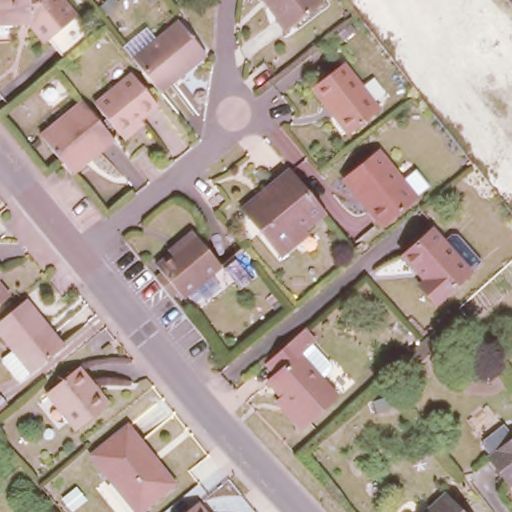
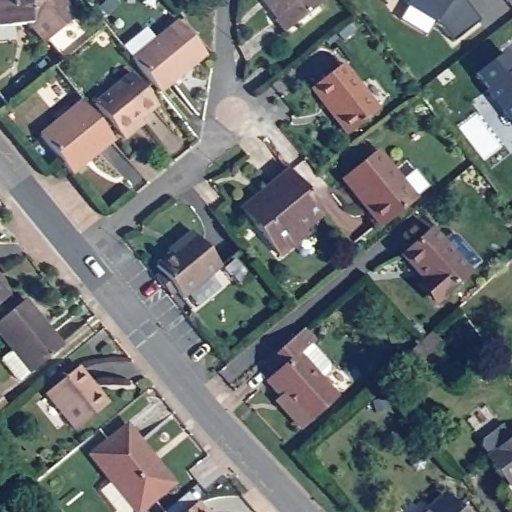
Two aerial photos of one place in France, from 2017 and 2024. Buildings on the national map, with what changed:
unchanged [(42,37),(40,39),(26,20),(0,22),(0,0),(59,0),(70,14),(85,34),(57,56),(42,37)]
unchanged [(287,29),(275,15),(277,14),(267,0),(324,0),(325,0),(287,29)]
demolished [(382,0),(392,0),(385,5),(382,0)]
new [(453,40),(435,18),(407,2),(406,0),(466,0),(480,18),(453,40)]
unchanged [(178,19),(207,55),(160,92),(132,56),(178,19)]
new [(502,51),(512,62),(512,117),(477,70),(502,51)]
unchanged [(325,99),(313,84),(345,59),(380,106),(352,128),(348,130),(325,99)]
unchanged [(94,99),(131,70),(156,103),(119,131),(94,99)]
unchanged [(67,165),(60,157),(36,127),(78,93),(113,136),(90,155),(70,170),(67,165)]
unchanged [(342,177),(373,151),(411,199),(375,228),(360,207),(338,179),(342,177)]
unchanged [(305,225),(308,229),(280,252),(243,205),(292,165),(326,209),(305,225)]
unchanged [(156,271),(162,266),(157,260),(171,249),(169,245),(180,237),(193,226),(222,261),(184,293),(177,284),(171,289),(156,271)]
demolished [(498,238),(512,227),(512,256),(498,238)]
unchanged [(422,281),(427,276),(407,253),(434,229),(470,270),(437,299),(422,281)]
unchanged [(0,302),(0,284),(8,295),(0,302)]
unchanged [(17,379),(0,359),(12,349),(0,334),(0,318),(25,299),(62,345),(30,371),(29,369),(17,379)]
unchanged [(282,395),(268,379),(279,369),(270,358),(298,333),(303,329),(315,342),(310,346),(300,354),(336,395),(302,427),(288,411),(277,399),(282,395)]
unchanged [(400,361),(410,352),(423,340),(435,330),(445,342),(420,363),(409,373),(400,361)]
unchanged [(45,392),(77,367),(108,404),(77,429),(45,392)]
unchanged [(0,405),(0,392),(6,400),(0,405)]
unchanged [(509,484),(488,457),(500,449),(490,436),(508,423),(512,427),(512,482),(509,484)]
unchanged [(90,454),(126,424),(175,484),(140,512),(138,512),(90,454)]
unchanged [(466,512),(424,512),(447,492),(466,512)]
unchanged [(197,498),(209,512),(179,512),(197,498)]

